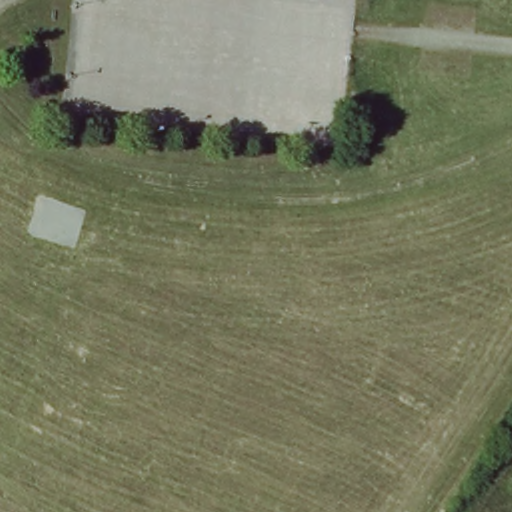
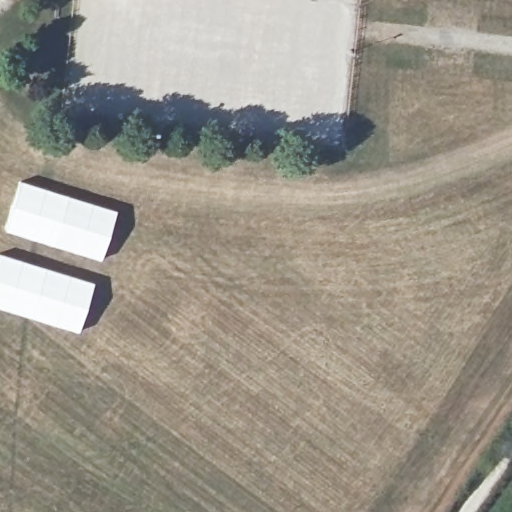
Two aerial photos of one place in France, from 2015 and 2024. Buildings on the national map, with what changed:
new [(19,179),(118,210),(102,261),(3,230),(19,179)]
new [(94,281),(78,333),(0,309),(0,253),(94,281)]

